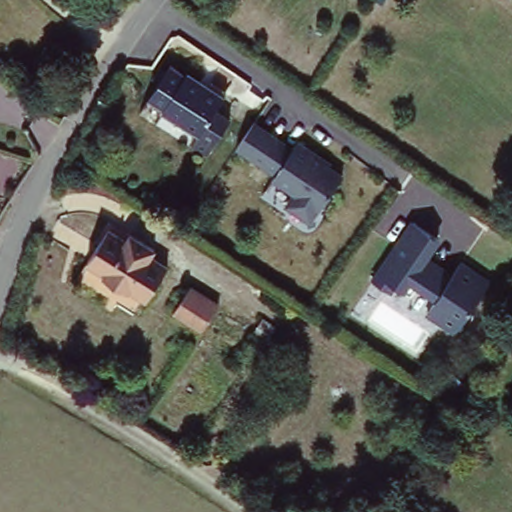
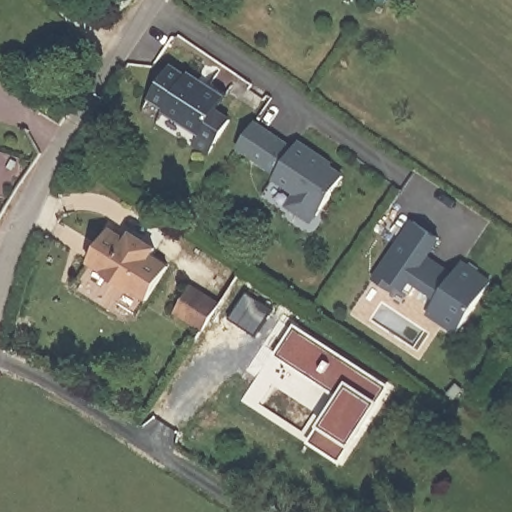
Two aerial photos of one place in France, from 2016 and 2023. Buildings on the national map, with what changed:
unchanged [(168,65),(184,74),(185,72),(204,84),(205,81),(223,94),(212,110),(227,120),(204,154),(189,145),(199,131),(182,120),(180,123),(160,110),(162,108),(147,97),(168,65)]
unchanged [(262,115),(299,142),(305,135),(338,158),(335,162),(349,172),(325,204),(323,203),(314,215),(292,199),(301,187),(279,170),(282,166),(244,140),(262,115)]
unchanged [(460,329),(431,309),(441,294),(422,280),(415,291),(398,279),(394,286),(377,275),(418,216),(443,233),(428,255),(455,274),(465,259),(495,279),(460,329)]
unchanged [(131,235),(138,239),(155,250),(152,256),(167,265),(147,299),(131,290),(129,292),(103,276),(104,273),(88,262),(108,228),(128,240),(131,235)]
unchanged [(198,281),(224,298),(206,326),(179,308),(198,281)]
new [(389,389),(340,463),(307,443),(338,395),(275,356),(294,328),(389,389)]

